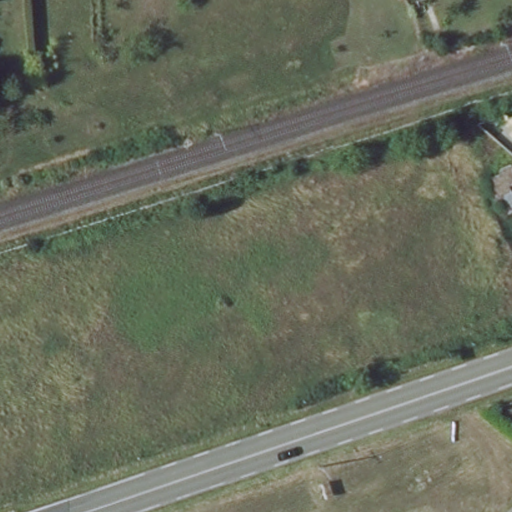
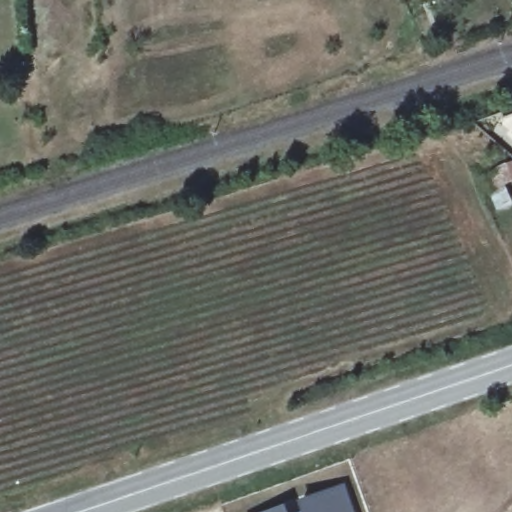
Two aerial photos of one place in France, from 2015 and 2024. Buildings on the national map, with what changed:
unchanged [(491,180),(507,175),(504,165),(512,163),(512,181),(509,182),(512,189),(512,217),(504,220),(491,180)]
new [(344,486),(353,512),(300,512),(296,501),(344,486)]
new [(285,506),(287,512),(266,512),(285,506)]

